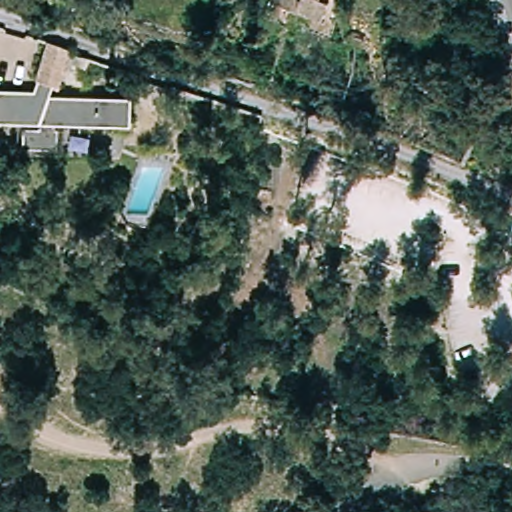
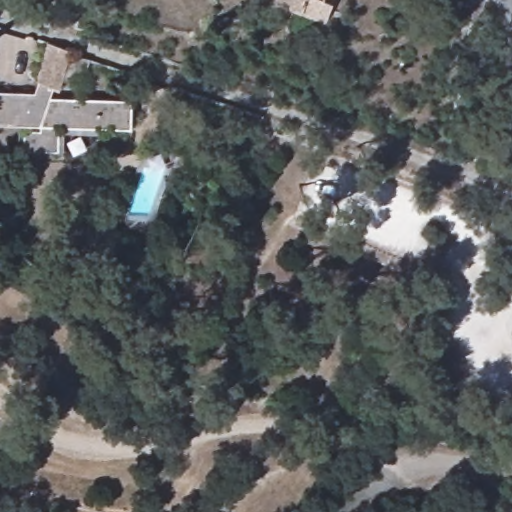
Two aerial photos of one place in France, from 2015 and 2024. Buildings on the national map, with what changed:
unchanged [(273,0),(315,0),(307,17),(273,0)]
unchanged [(36,94),(42,84),(50,59),(73,69),(65,93),(56,89),(52,100),(133,103),(133,131),(60,128),(60,153),(27,152),(27,133),(41,132),(41,128),(0,126),(0,94),(36,94)]

